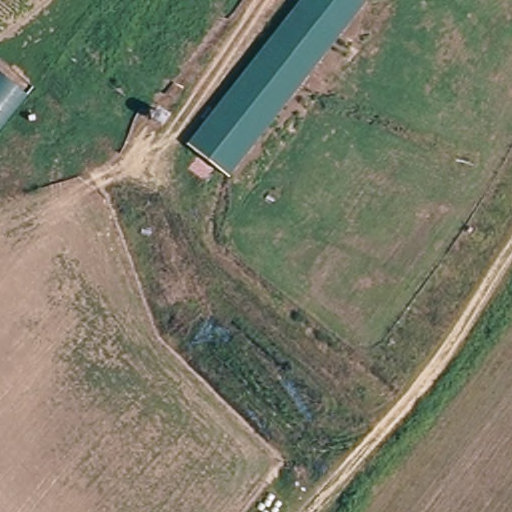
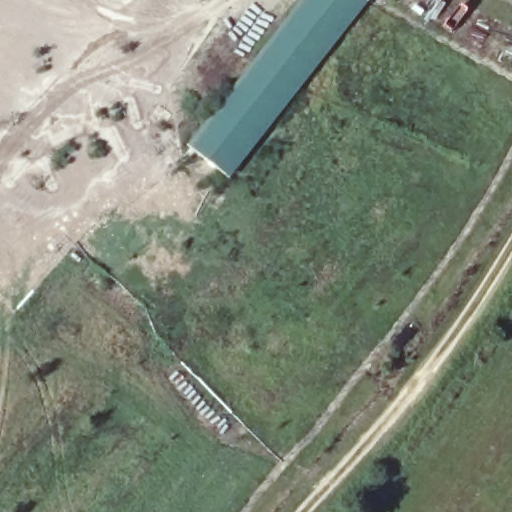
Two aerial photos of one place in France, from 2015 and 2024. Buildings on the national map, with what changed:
unchanged [(184,146),(311,0),(361,0),(368,6),(219,177),(184,146)]
demolished [(22,93),(0,122),(0,76),(22,93)]

